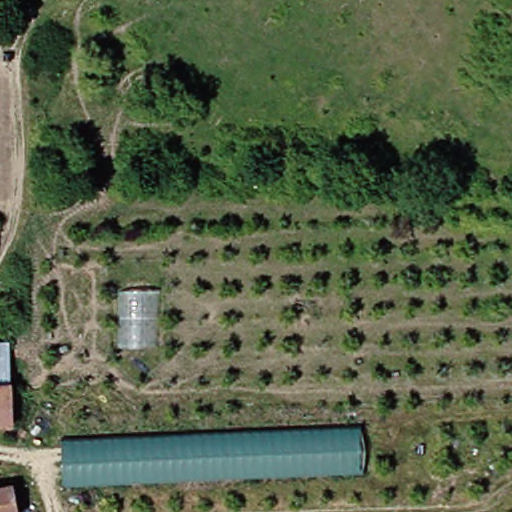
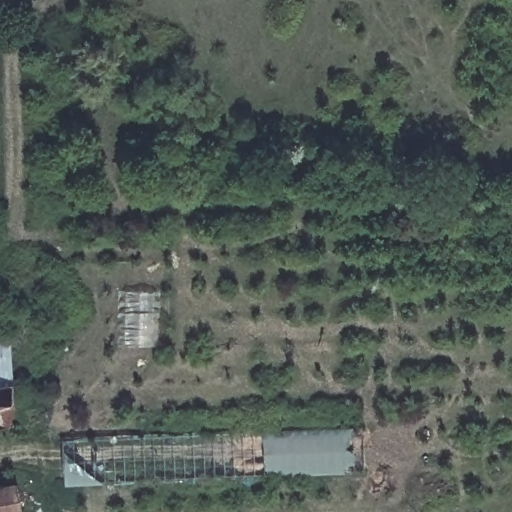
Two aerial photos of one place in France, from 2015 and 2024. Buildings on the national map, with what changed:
unchanged [(13,421),(0,421),(0,337),(11,337),(13,421)]
unchanged [(365,468),(64,482),(61,436),(361,422),(365,468)]
unchanged [(14,512),(0,512),(0,490),(13,487),(14,512)]

